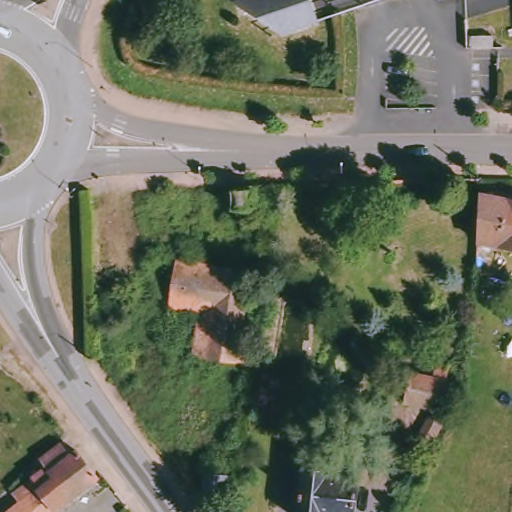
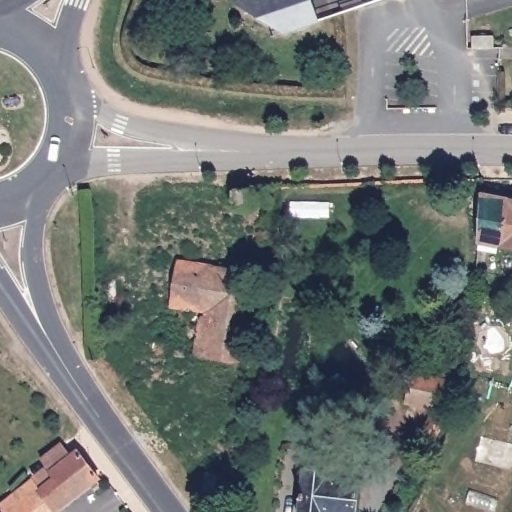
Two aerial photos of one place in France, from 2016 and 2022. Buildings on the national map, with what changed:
unchanged [(314,5),(320,24),(302,30),(299,23),(276,30),(260,21),(253,2),(261,0),(317,0),(319,4),(314,5)]
unchanged [(499,35),(498,48),(477,48),(477,34),(499,35)]
unchanged [(270,190),(271,208),(237,207),(238,189),(270,190)]
unchanged [(482,198),(512,204),(512,249),(483,243),(482,198)]
unchanged [(258,270),(245,360),(202,355),(209,310),(176,307),(183,260),(258,270)]
unchanged [(443,405),(411,397),(417,368),(439,373),(442,363),(452,365),(443,405)]
unchanged [(435,411),(447,418),(436,440),(424,432),(435,411)]
unchanged [(66,445),(74,456),(80,452),(101,481),(58,512),(4,512),(0,507),(0,506),(51,473),(45,466),(66,445)]
unchanged [(320,461),(344,463),(344,475),(358,476),(356,512),(300,512),(302,473),(319,474),(320,461)]

